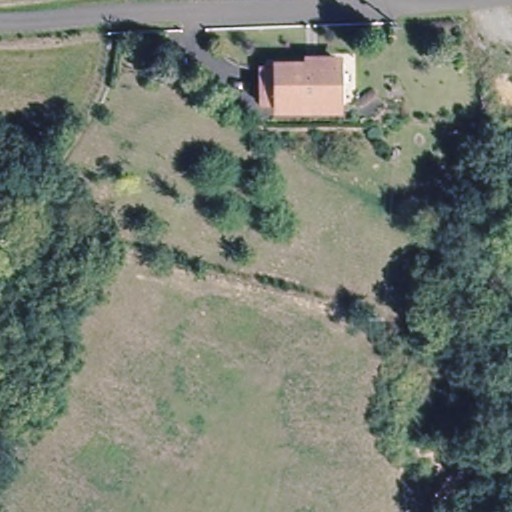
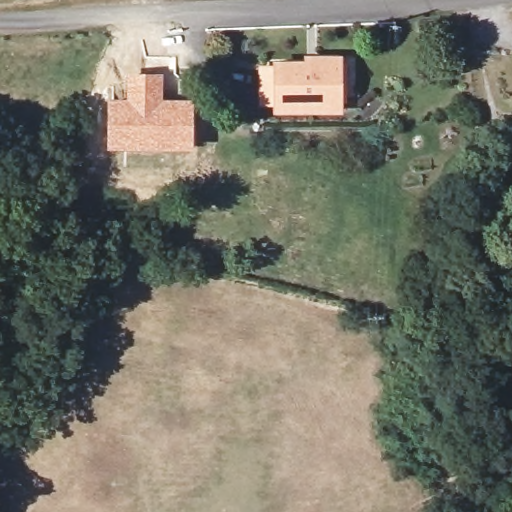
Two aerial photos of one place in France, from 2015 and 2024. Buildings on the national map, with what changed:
unchanged [(316,54),(335,55),(335,101),(262,102),(261,64),(276,65),(277,60),(316,60),(316,54)]
new [(106,100),(124,99),(124,74),(162,74),(162,99),(193,100),(192,151),(106,150),(106,100)]

